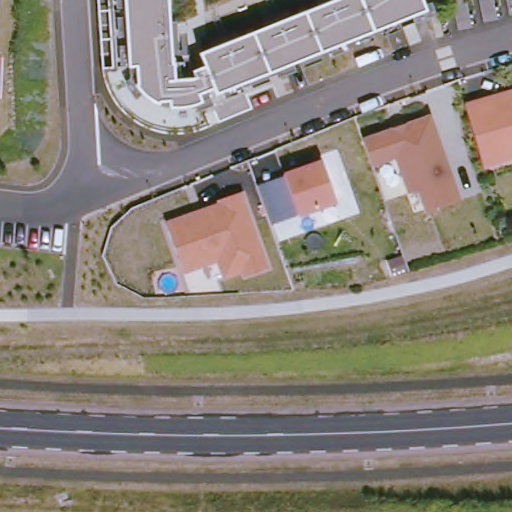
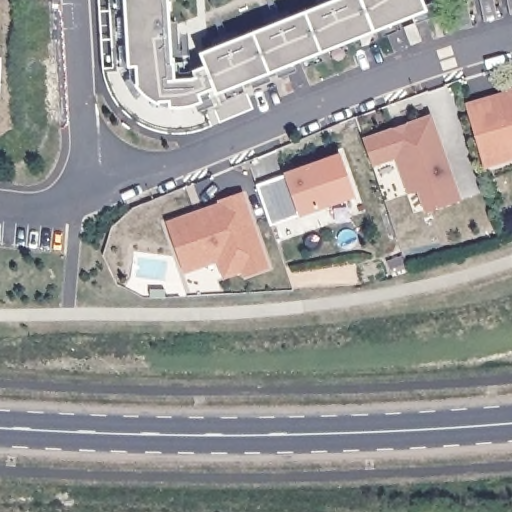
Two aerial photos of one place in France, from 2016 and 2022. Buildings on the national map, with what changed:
unchanged [(0,59),(0,0),(3,0),(0,59)]
unchanged [(214,93),(212,89),(198,94),(200,101),(195,104),(178,107),(167,106),(166,100),(158,100),(157,103),(147,99),(140,92),(135,85),(133,66),(125,66),(121,0),(169,0),(173,79),(190,77),(192,76),(191,69),(203,64),(198,52),(328,0),(421,0),(425,11),(214,93)]
unchanged [(16,70),(15,105),(0,105),(0,70),(16,70)]
unchanged [(512,159),(483,167),(466,109),(465,106),(512,92),(512,159)]
unchanged [(462,200),(424,215),(413,189),(405,191),(393,160),(370,166),(360,137),(430,112),(462,200)]
unchanged [(336,201),(298,214),(270,225),(253,182),(320,159),(336,201)]
unchanged [(242,278),(240,272),(222,278),(216,261),(182,270),(164,221),(212,202),(217,198),(242,190),(270,267),(242,278)]

